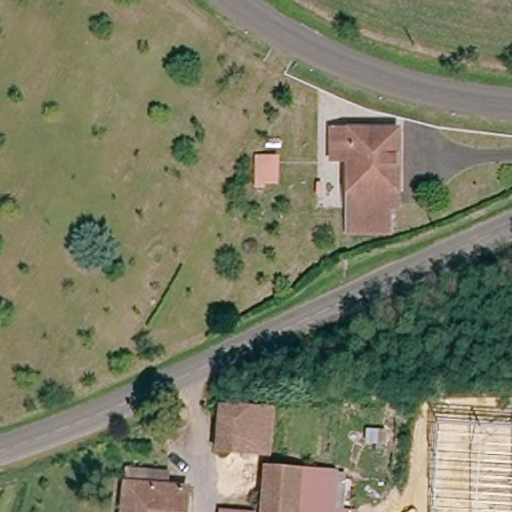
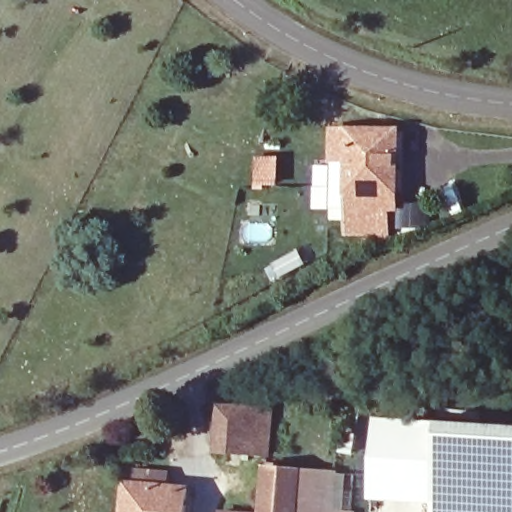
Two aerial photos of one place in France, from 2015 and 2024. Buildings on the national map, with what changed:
unchanged [(346,201),(345,164),(327,163),(330,127),(401,129),(400,192),(394,235),(345,237),(346,201)]
unchanged [(219,450),(222,406),(276,411),(268,455),(219,450)]
new [(375,418),(437,422),(433,503),(370,501),(375,418)]
new [(512,512),(433,512),(437,422),(512,427),(512,512)]
unchanged [(262,511),(263,502),(271,464),(342,475),(336,512),(261,512),(262,511)]
unchanged [(120,476),(142,478),(142,490),(179,493),(177,512),(117,512),(120,476)]
unchanged [(217,505),(262,511),(261,512),(216,512),(217,505)]

